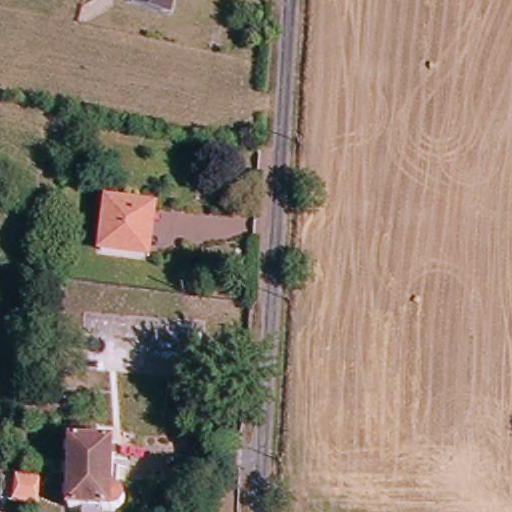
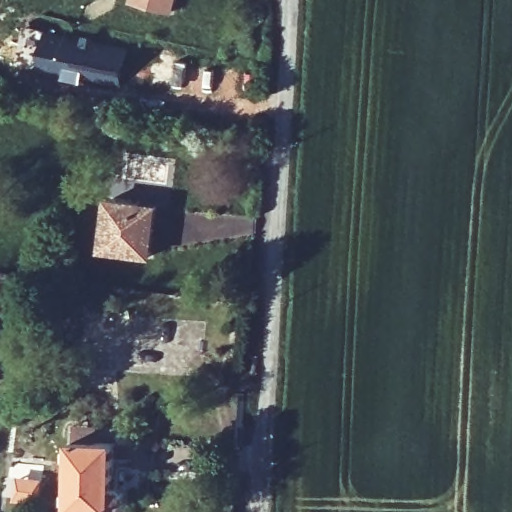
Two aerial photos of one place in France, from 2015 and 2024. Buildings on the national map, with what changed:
unchanged [(165,10),(134,0),(174,0),(171,12),(165,10)]
new [(63,78),(63,74),(44,70),(55,51),(62,55),(65,42),(89,41),(128,50),(119,90),(63,78)]
unchanged [(151,255),(101,249),(110,199),(156,205),(151,255)]
unchanged [(114,489),(121,491),(125,495),(126,501),(124,507),(118,510),(72,509),(72,442),(114,442),(114,489)]

